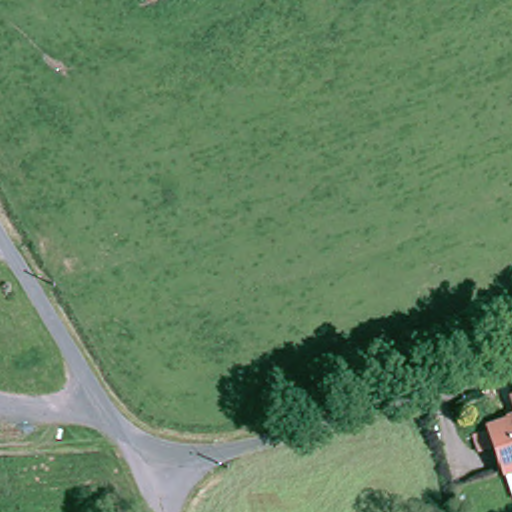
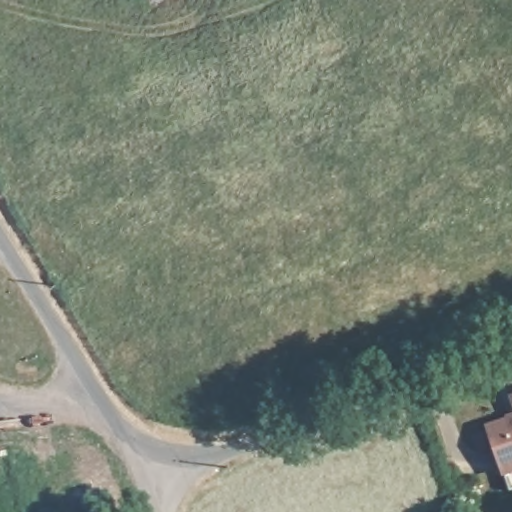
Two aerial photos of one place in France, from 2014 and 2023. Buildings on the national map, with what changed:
unchanged [(157,0),(165,0),(159,3),(157,0)]
unchanged [(508,469),(494,429),(512,423),(512,467),(508,469)]

